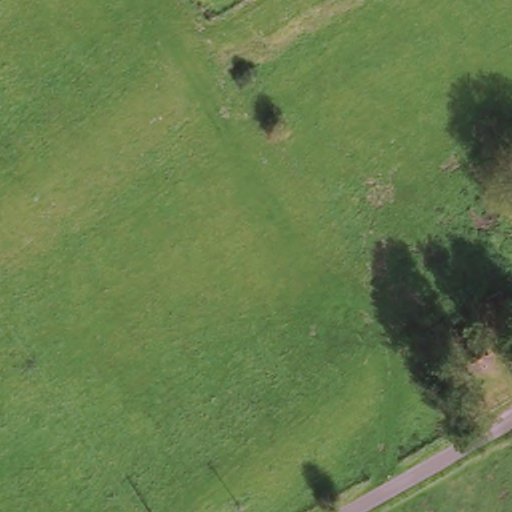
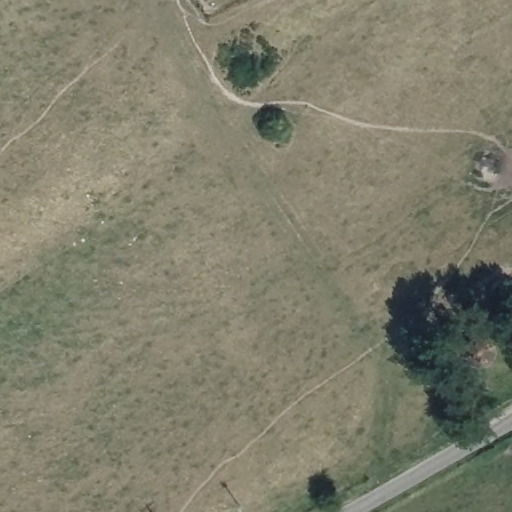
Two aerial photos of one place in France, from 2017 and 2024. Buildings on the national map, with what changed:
unchanged [(477,360),(463,358),(455,344),(489,325),(500,351),(477,360)]

